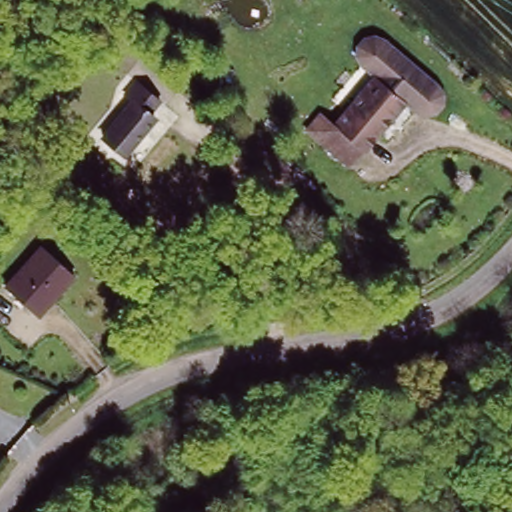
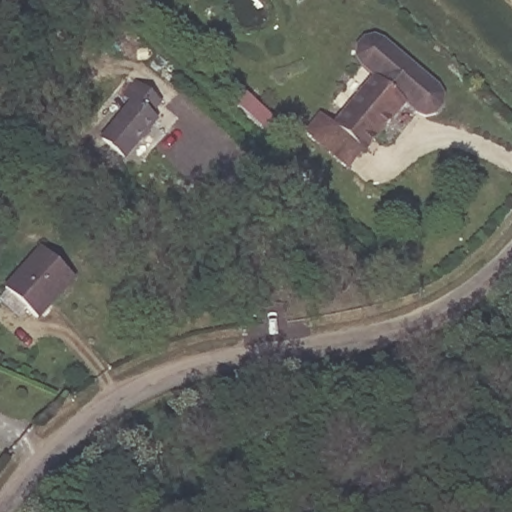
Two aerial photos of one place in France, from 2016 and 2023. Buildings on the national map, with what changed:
unchanged [(320,110),(334,123),(335,124),(348,110),(379,76),(365,65),(361,56),(361,46),(367,38),(377,36),(387,38),(440,84),(445,93),(445,103),(438,110),(428,112),(418,110),(407,100),(365,147),(363,145),(348,163),(320,139),(306,126),(320,110)]
unchanged [(133,106),(125,97),(138,84),(162,108),(152,119),(158,126),(123,160),(102,138),(133,106)]
unchanged [(42,249),(75,275),(37,319),(7,290),(42,249)]

